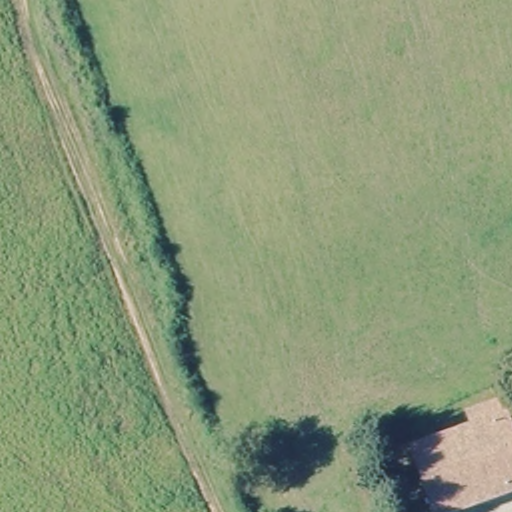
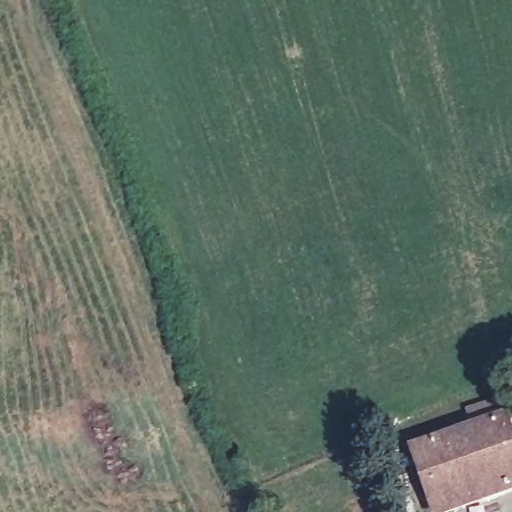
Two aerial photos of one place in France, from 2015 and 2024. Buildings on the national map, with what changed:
unchanged [(485,436),(480,421),(505,410),(512,429),(512,500),(475,512),(439,512),(421,459),(485,436)]

